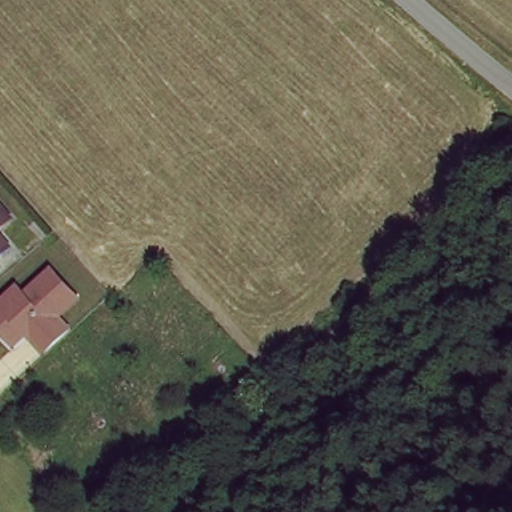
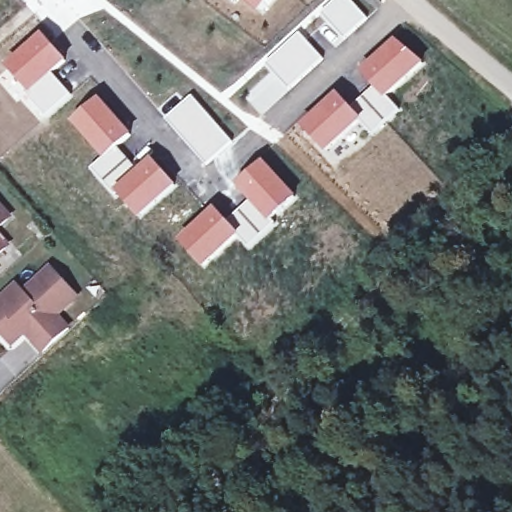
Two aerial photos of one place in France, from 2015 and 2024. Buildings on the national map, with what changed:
new [(241,0),(273,0),(261,15),(241,0)]
new [(354,0),(370,17),(345,39),(318,10),(328,0),(354,0)]
new [(299,28),(326,59),(290,90),(270,70),(261,61),(299,28)]
new [(45,117),(28,95),(7,67),(43,32),(68,60),(54,73),(73,95),(45,117)]
new [(396,37),(424,62),(388,98),(373,85),(361,73),(396,37)]
new [(270,70),(290,90),(261,116),(242,95),(270,70)]
new [(373,85),(388,98),(401,110),(374,133),(360,118),(361,116),(365,112),(356,102),(373,85)]
new [(191,91),(233,141),(205,165),(161,116),(191,91)]
new [(338,92),(361,116),(360,118),(326,151),(303,126),(338,92)]
new [(101,96),(133,133),(118,146),(103,157),(72,122),(101,96)]
new [(103,157),(118,146),(138,169),(114,194),(90,168),(103,157)]
new [(138,169),(152,156),(177,184),(138,218),(114,194),(138,169)]
new [(265,159),(297,196),(270,222),(248,199),(236,185),(265,159)]
unchanged [(0,226),(0,198),(14,214),(0,226)]
new [(248,199),(270,222),(273,225),(250,248),(238,235),(240,232),(236,229),(240,226),(231,215),(248,199)]
new [(216,206),(230,221),(236,229),(240,232),(238,235),(202,267),(178,241),(216,206)]
unchanged [(0,257),(0,232),(12,246),(0,257)]
unchanged [(69,328),(40,356),(24,337),(10,349),(0,339),(0,297),(15,283),(23,289),(50,265),(80,300),(60,317),(69,328)]

